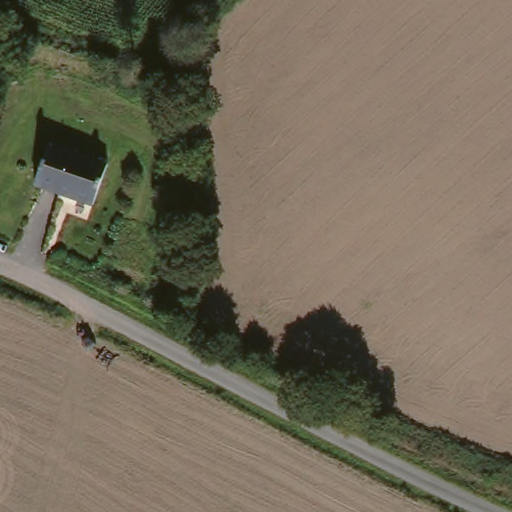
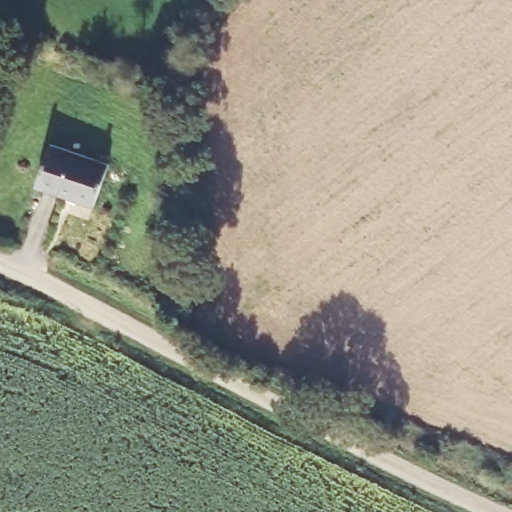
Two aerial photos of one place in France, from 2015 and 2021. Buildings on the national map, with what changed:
unchanged [(96,206),(40,187),(54,140),(110,162),(96,206)]

